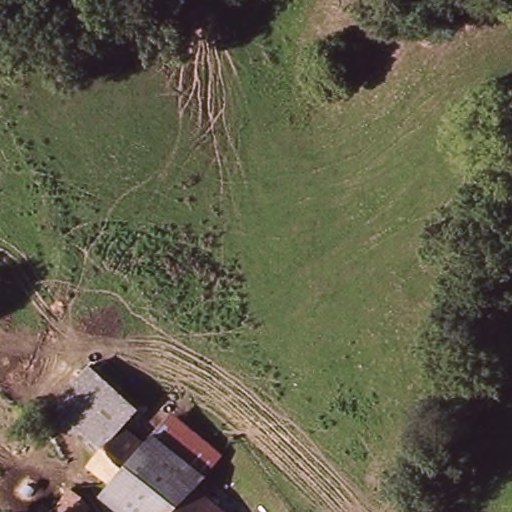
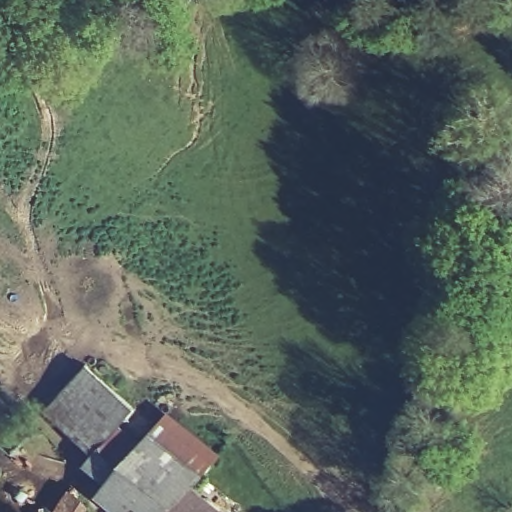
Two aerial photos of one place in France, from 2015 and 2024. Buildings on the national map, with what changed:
unchanged [(134,409),(123,425),(98,452),(49,409),(90,369),(134,409)]
unchanged [(221,462),(203,479),(150,435),(165,416),(221,462)]
unchanged [(123,425),(144,442),(150,435),(203,479),(195,489),(171,512),(136,512),(108,486),(119,473),(99,454),(98,452),(123,425)]
unchanged [(61,503),(74,488),(94,506),(89,512),(53,512),(61,503)]
unchanged [(219,512),(171,512),(195,489),(219,512)]

